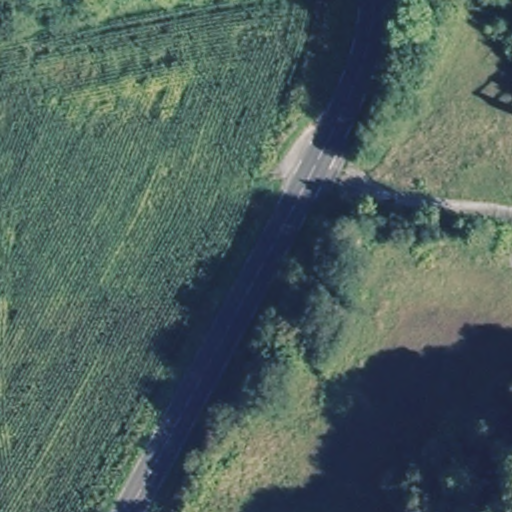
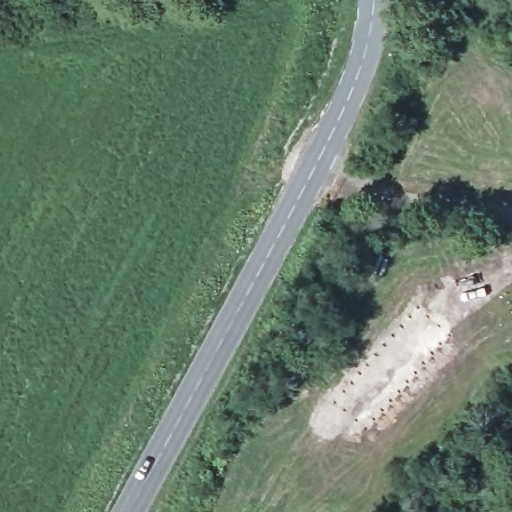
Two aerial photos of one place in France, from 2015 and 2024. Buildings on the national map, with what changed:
unchanged [(498,28),(508,10),(512,13),(512,36),(498,28)]

